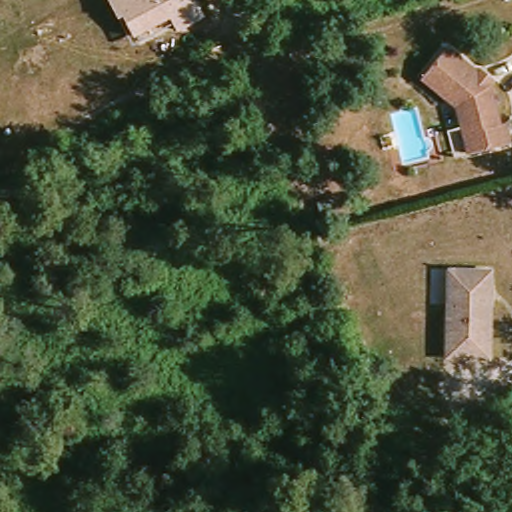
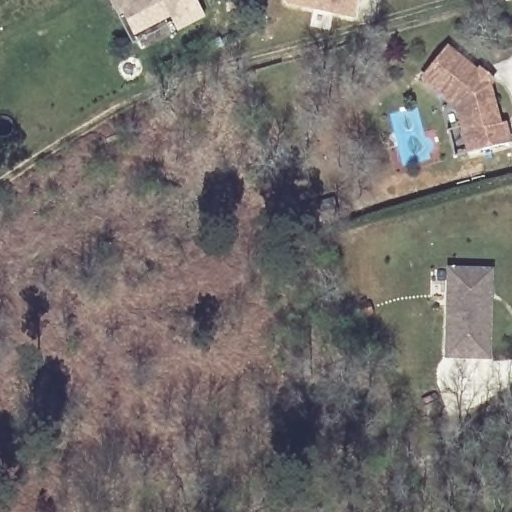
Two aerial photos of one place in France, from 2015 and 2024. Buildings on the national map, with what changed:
unchanged [(178,32),(172,21),(130,41),(109,0),(200,0),(208,17),(178,32)]
new [(287,2),(287,0),(359,0),(355,17),(318,8),(287,2)]
unchanged [(469,129),(462,106),(427,80),(452,47),(482,70),(484,66),(500,77),(496,86),(507,123),(512,123),(512,146),(477,154),(461,158),(454,131),(469,129)]
unchanged [(489,299),(492,299),(491,361),(447,359),(448,271),(490,273),(489,299)]

